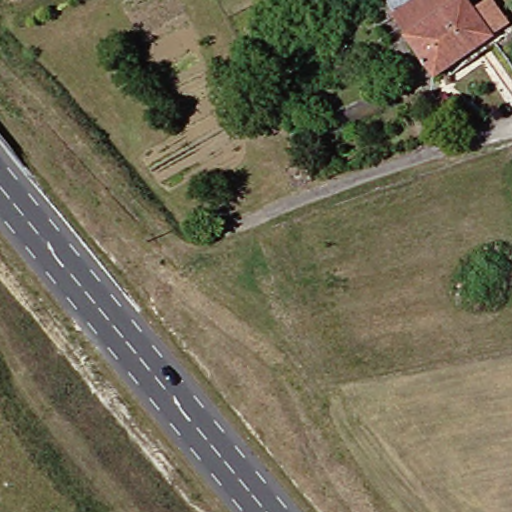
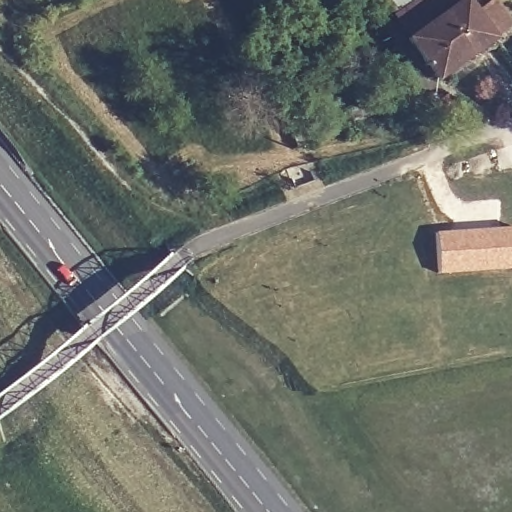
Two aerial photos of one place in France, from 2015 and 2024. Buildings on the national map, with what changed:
unchanged [(409,31),(390,0),(464,0),(409,31)]
unchanged [(409,31),(464,0),(471,0),(478,12),(495,3),(511,29),(494,38),(433,73),(409,31)]
new [(438,274),(435,232),(512,227),(512,269),(438,274)]

